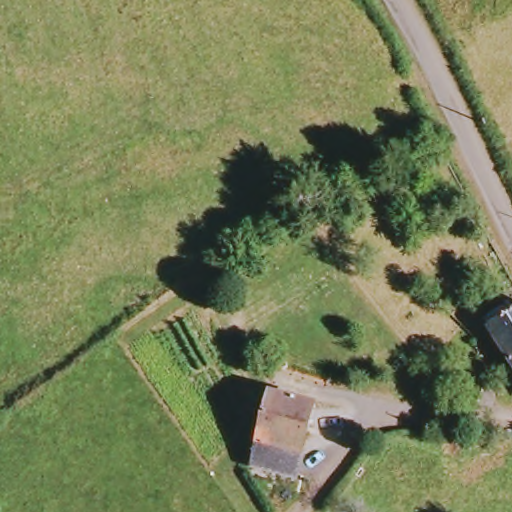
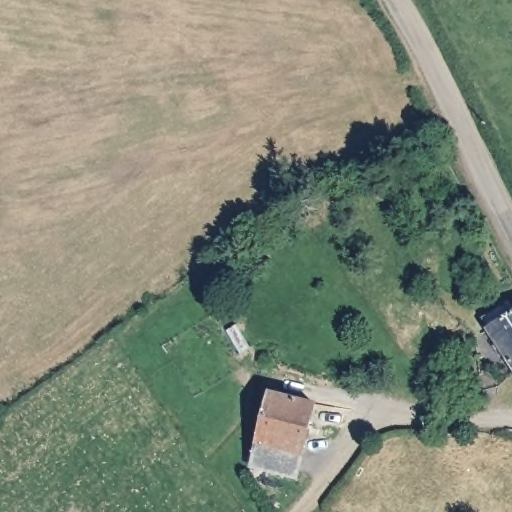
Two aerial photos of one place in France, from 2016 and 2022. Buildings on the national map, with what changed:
unchanged [(495,333),(488,321),(510,309),(512,313),(512,359),(495,333)]
unchanged [(302,475),(256,465),(272,392),(318,402),(302,475)]

